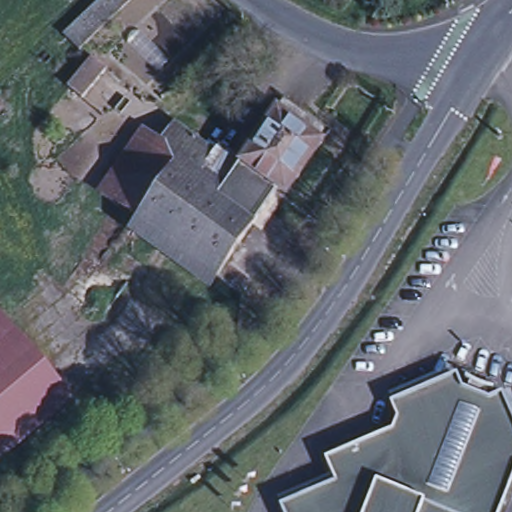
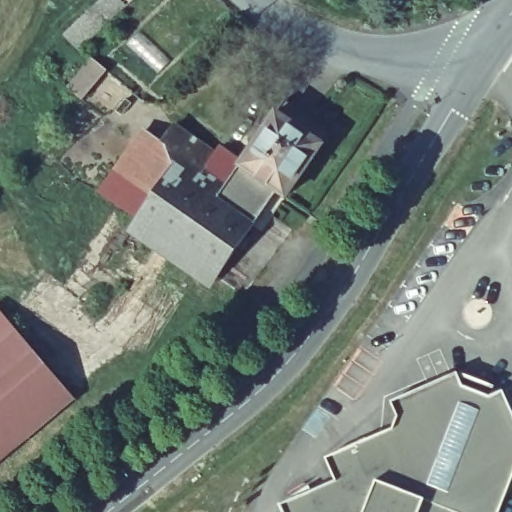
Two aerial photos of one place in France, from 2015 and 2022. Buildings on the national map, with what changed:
unchanged [(64,34),(99,0),(132,0),(79,50),(64,34)]
unchanged [(100,75),(70,98),(63,88),(93,66),(100,75)]
unchanged [(123,153),(139,128),(161,142),(174,122),(239,164),(276,107),(326,139),(287,201),(272,192),(207,293),(121,238),(134,218),(97,193),(123,153)]
unchanged [(62,393),(0,443),(0,318),(62,393)]
unchanged [(391,431),(397,416),(391,403),(457,374),(463,387),(491,397),(502,393),(512,415),(512,477),(497,512),(353,512),(339,483),(328,459),(391,431)]
unchanged [(285,508),(339,483),(353,512),(287,512),(285,508)]

